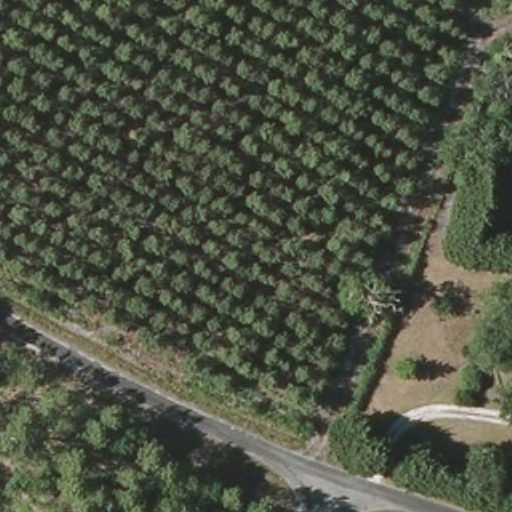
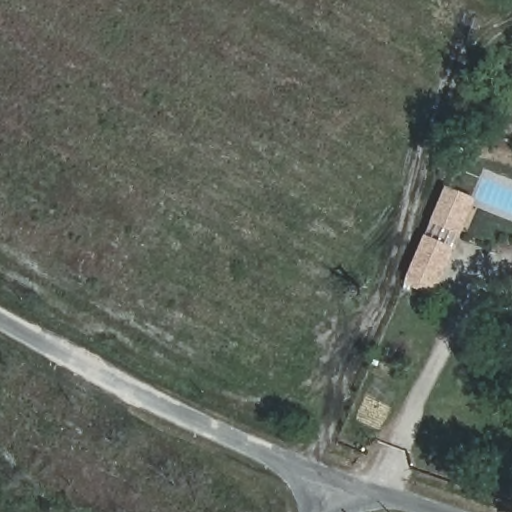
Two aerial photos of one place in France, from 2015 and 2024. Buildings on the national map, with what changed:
new [(444,190),(475,200),(436,291),(406,278),(444,190)]

